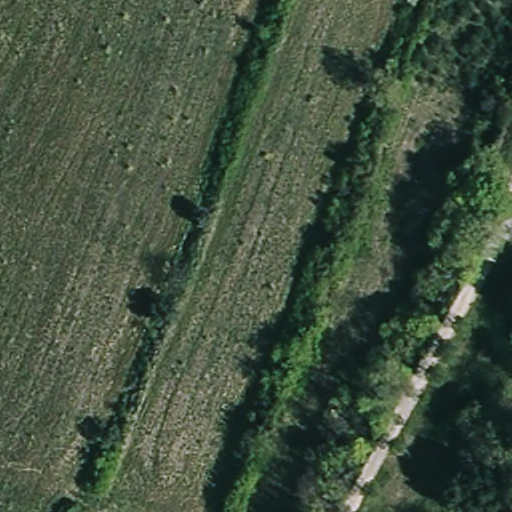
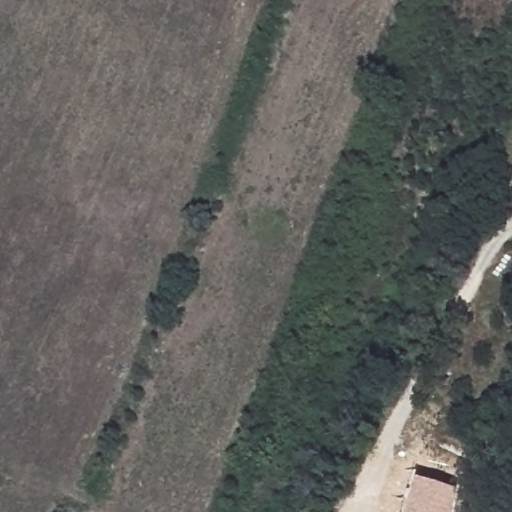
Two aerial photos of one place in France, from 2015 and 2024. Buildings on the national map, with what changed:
new [(415,476),(458,488),(451,512),(406,512),(415,476)]

